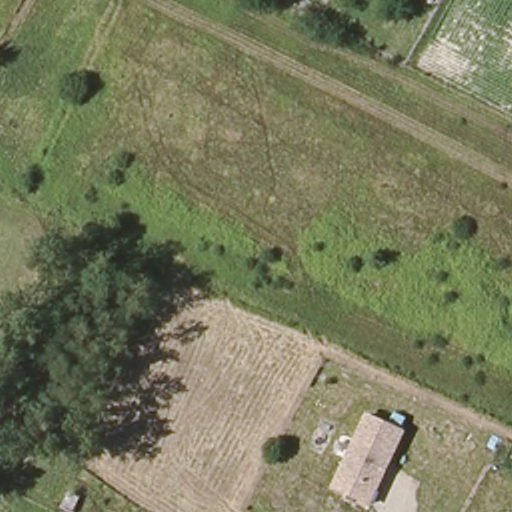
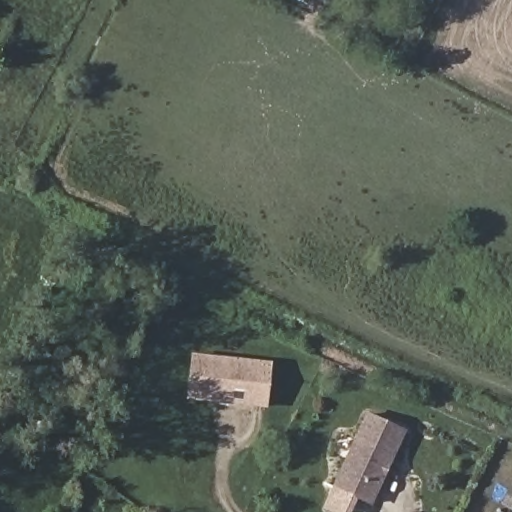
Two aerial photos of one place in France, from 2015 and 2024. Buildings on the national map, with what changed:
new [(187,400),(191,354),(272,363),(268,408),(187,400)]
unchanged [(370,504),(331,485),(367,409),(406,429),(370,504)]

